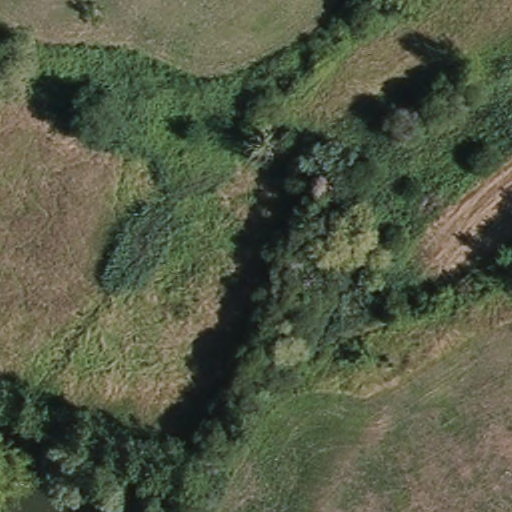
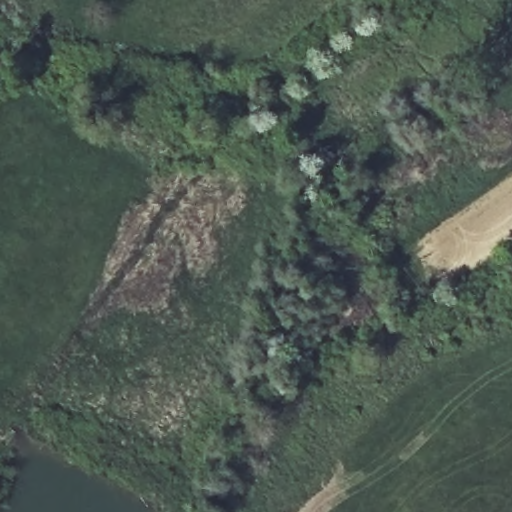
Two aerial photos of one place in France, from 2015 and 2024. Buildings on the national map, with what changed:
unchanged [(235,431),(242,416),(252,421),(246,435),(235,431)]
unchanged [(0,443),(0,428),(7,436),(0,443)]

